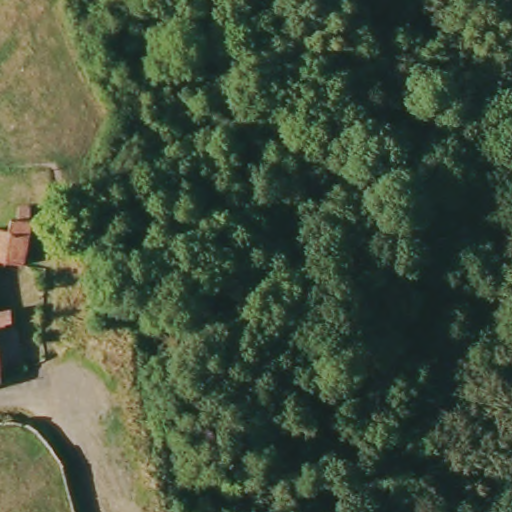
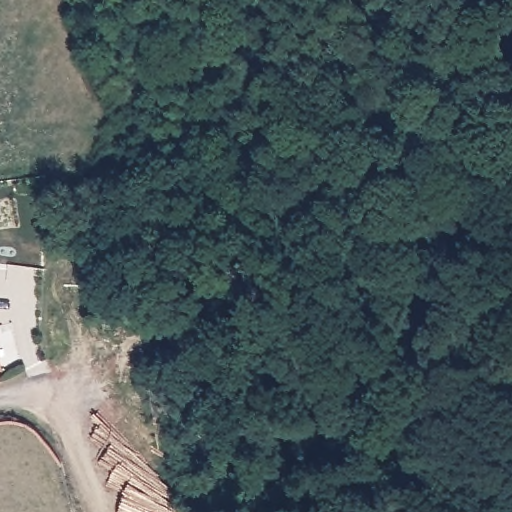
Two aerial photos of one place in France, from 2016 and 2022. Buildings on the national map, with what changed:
unchanged [(11,236),(12,225),(20,225),(18,214),(33,211),(34,222),(24,272),(0,265),(0,235),(11,236)]
unchanged [(4,308),(5,321),(0,322),(0,309),(4,308)]

